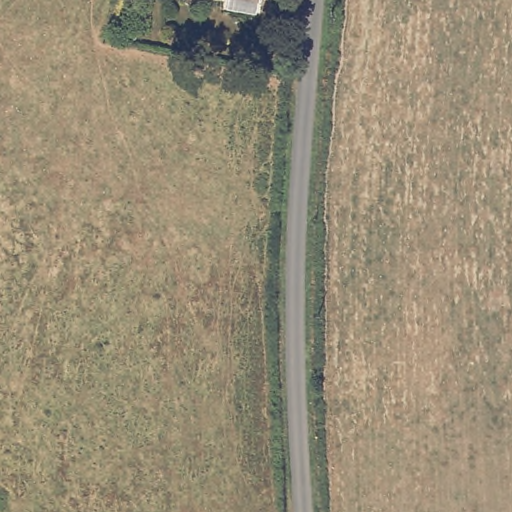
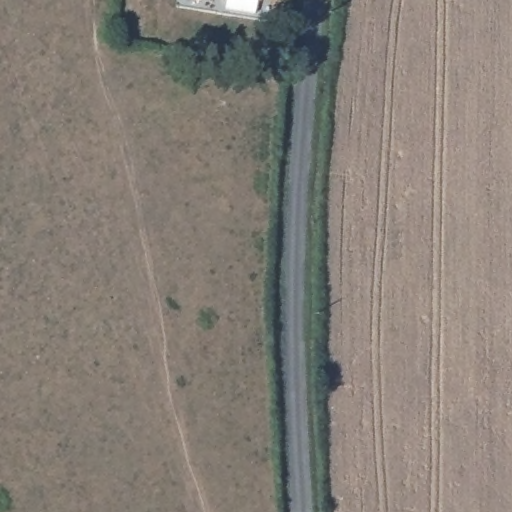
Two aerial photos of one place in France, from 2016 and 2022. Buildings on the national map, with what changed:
unchanged [(255,3),(252,16),(224,11),(226,0),(260,0),(259,2),(255,3)]

